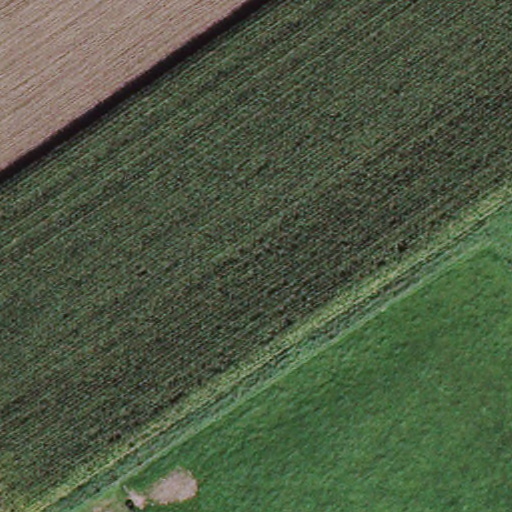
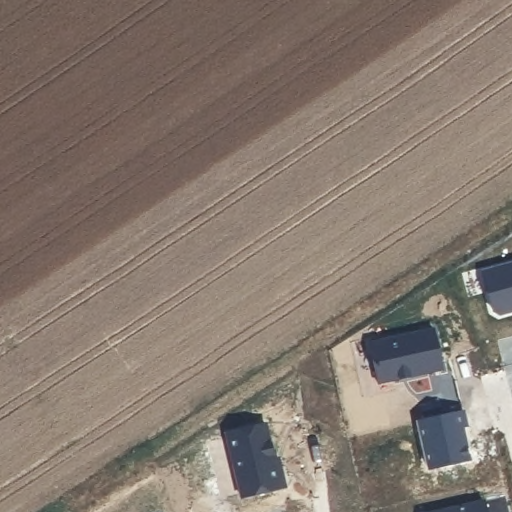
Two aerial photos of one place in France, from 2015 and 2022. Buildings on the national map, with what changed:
new [(512,252),(512,305),(505,310),(499,309),(488,292),(491,289),(480,273),(512,252)]
new [(446,323),(455,363),(423,370),(422,369),(411,371),(412,373),(376,380),(367,340),(446,323)]
new [(461,408),(465,424),(460,425),(467,457),(427,466),(416,418),(461,408)]
new [(262,421),(271,456),(276,455),(283,484),(239,495),(223,430),(262,421)]
new [(482,499),(485,512),(426,512),(482,499)]

